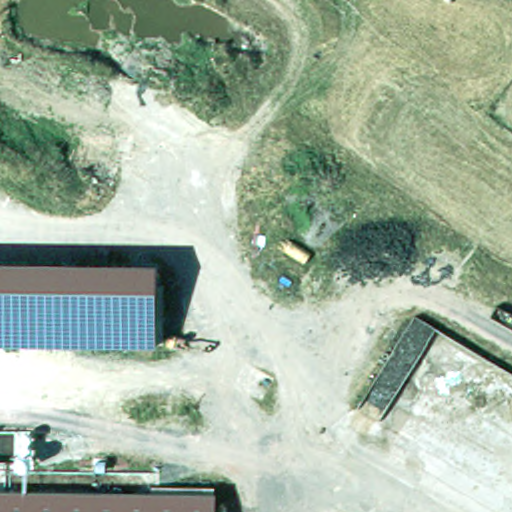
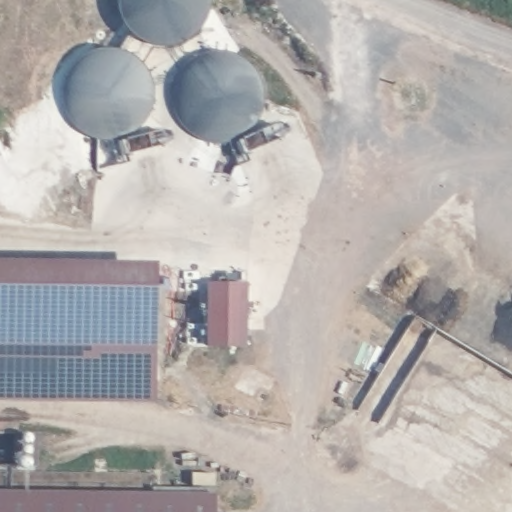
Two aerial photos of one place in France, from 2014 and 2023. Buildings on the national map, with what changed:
unchanged [(159,263),(156,346),(0,344),(0,259),(159,263)]
new [(248,281),(247,346),(207,345),(208,282),(248,281)]
new [(156,346),(155,403),(0,401),(0,345),(156,346)]
unchanged [(216,492),(216,512),(0,512),(0,489),(216,492)]

